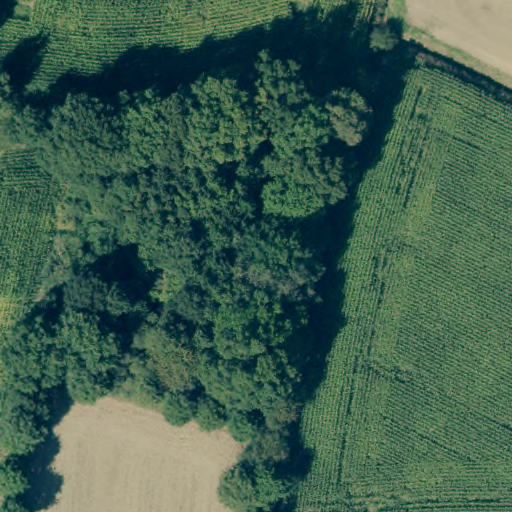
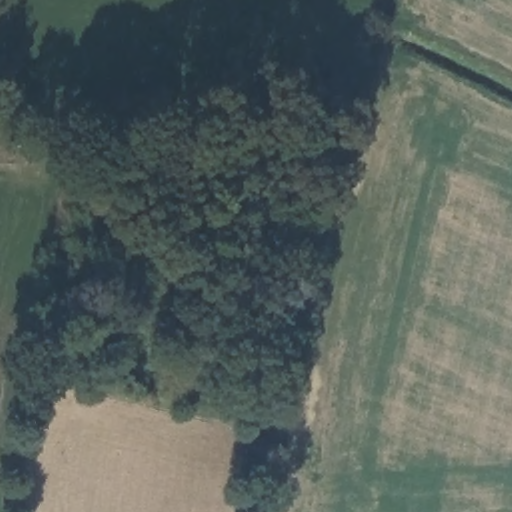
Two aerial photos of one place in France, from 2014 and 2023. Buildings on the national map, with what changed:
[]

